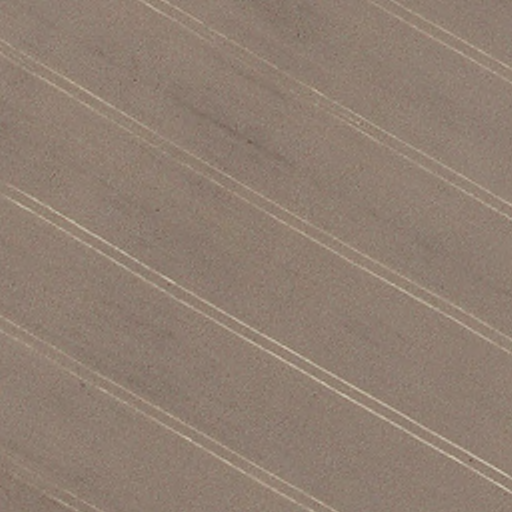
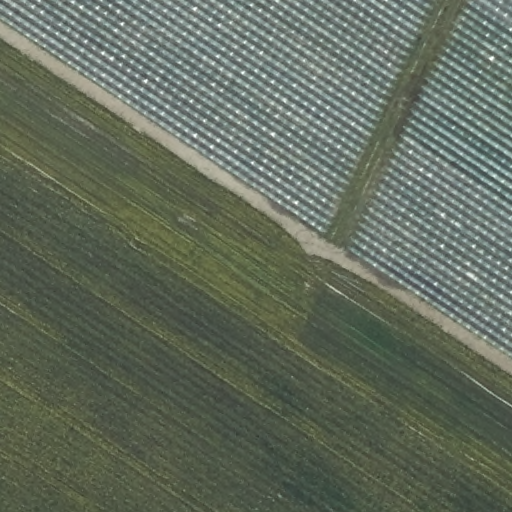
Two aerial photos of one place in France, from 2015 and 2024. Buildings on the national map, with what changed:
[]

